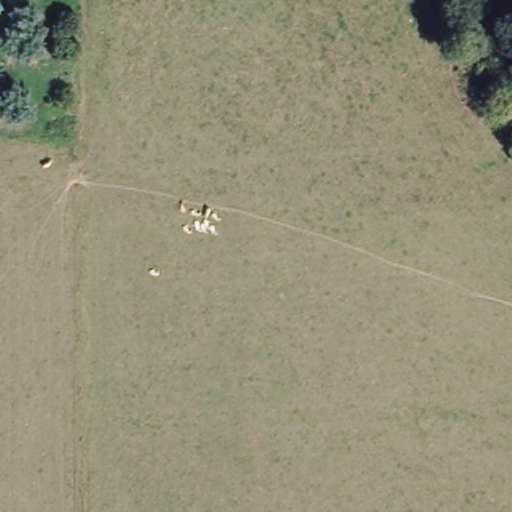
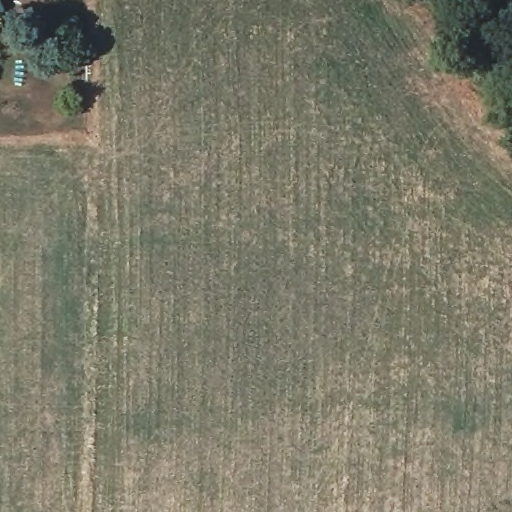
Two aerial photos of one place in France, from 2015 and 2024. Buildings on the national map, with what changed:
unchanged [(0,11),(0,2),(5,9),(0,11)]

